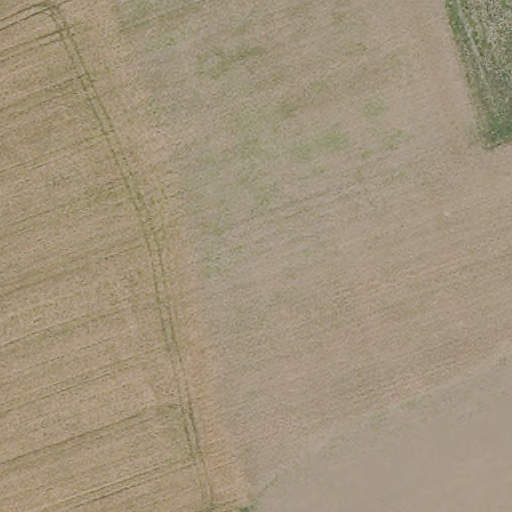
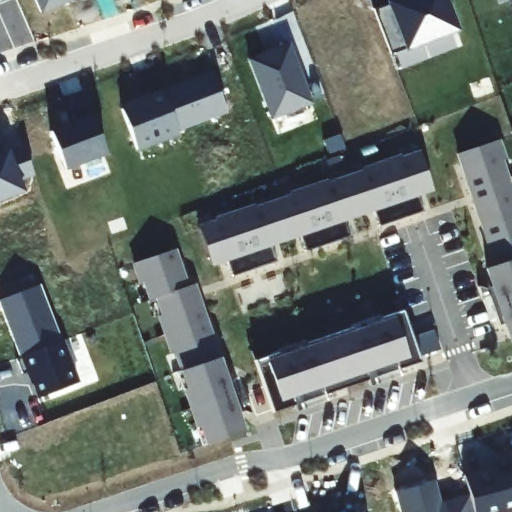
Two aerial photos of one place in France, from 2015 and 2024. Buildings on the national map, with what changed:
new [(34,0),(71,0),(40,14),(34,0)]
new [(390,54),(373,9),(387,5),(385,0),(387,0),(447,0),(458,30),(405,50),(405,49),(390,54)]
new [(247,59),(290,43),(313,102),(270,120),(247,59)]
new [(210,71),(227,113),(178,131),(162,90),(210,71)]
new [(120,105),(162,90),(178,131),(179,135),(138,151),(120,105)]
new [(50,130),(91,115),(107,155),(65,170),(50,130)]
new [(512,190),(512,335),(510,336),(485,264),(495,261),(457,147),(495,135),(512,190)]
new [(9,154),(23,147),(34,175),(20,180),(23,191),(0,200),(0,152),(7,149),(9,154)]
new [(418,147),(430,185),(417,189),(422,206),(377,220),(371,204),(342,212),(348,230),(304,245),(300,229),(268,238),(275,255),(232,268),(226,251),(212,258),(200,220),(418,147)]
new [(173,245),(184,280),(193,277),(243,425),(205,436),(155,290),(150,293),(133,259),(173,245)]
new [(0,306),(0,299),(40,285),(62,340),(20,356),(0,306)]
new [(275,347),(276,352),(307,342),(305,338),(350,321),(350,327),(381,319),(377,312),(400,305),(408,333),(431,326),(437,346),(417,351),(417,356),(395,363),(392,354),(362,364),(365,373),(321,387),(319,379),(290,389),(293,399),(271,405),(255,353),(275,347)]
new [(37,398),(26,371),(21,372),(15,357),(20,356),(62,340),(77,382),(37,398)]
new [(512,457),(512,505),(481,512),(474,512),(463,471),(512,457)]
new [(395,490),(435,481),(440,502),(470,495),(474,512),(400,512),(395,490)]
new [(362,511),(363,512),(360,512),(362,511)]

